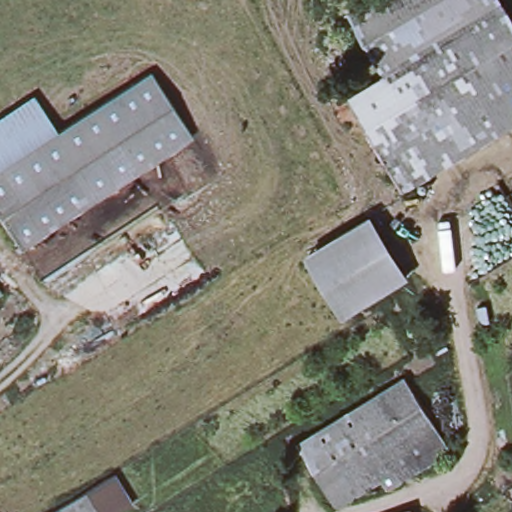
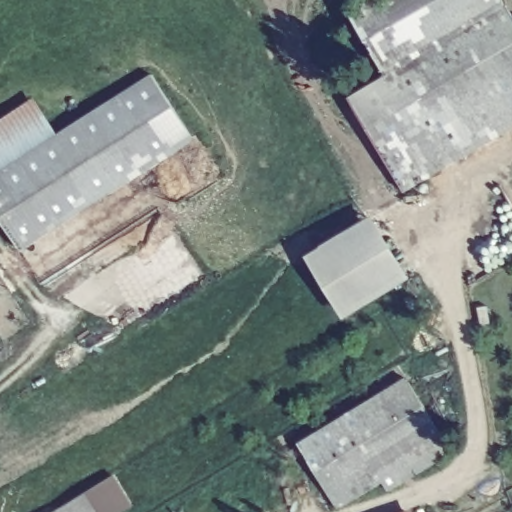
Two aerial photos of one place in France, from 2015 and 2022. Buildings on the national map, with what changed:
unchanged [(512,133),(408,200),(341,93),(377,76),(341,9),(357,0),(498,0),(500,2),(512,25),(512,133)]
unchanged [(148,73),(190,139),(18,250),(0,221),(0,169),(53,134),(148,73)]
unchanged [(31,101),(53,134),(0,169),(0,121),(31,101)]
unchanged [(366,215),(404,275),(346,312),(311,254),(309,251),(360,219),(366,215)]
unchanged [(445,441),(435,447),(428,437),(331,498),(310,464),(415,396),(438,431),(445,441)]
unchanged [(130,506),(121,512),(43,512),(110,473),(130,506)]
unchanged [(406,512),(393,512),(405,508),(406,512)]

